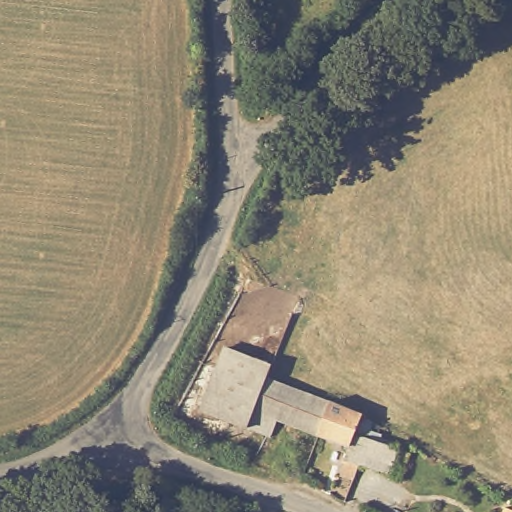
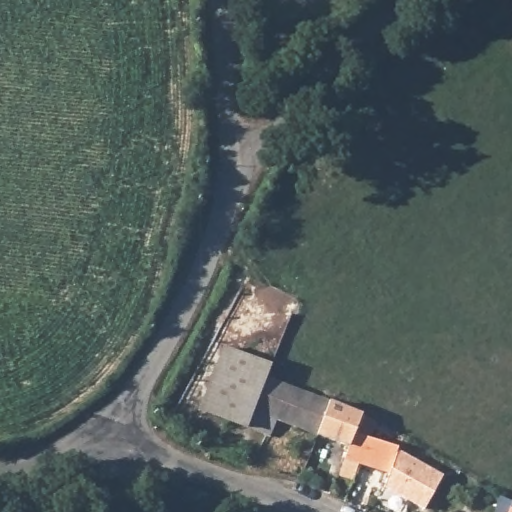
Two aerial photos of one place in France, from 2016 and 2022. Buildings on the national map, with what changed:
unchanged [(254,418),(251,425),(205,405),(225,357),(229,346),(260,360),(256,370),(273,378),(254,418)]
unchanged [(324,399),(313,432),(310,442),(254,418),(273,378),(324,399)]
unchanged [(337,454),(339,444),(313,432),(324,399),(366,417),(361,433),(353,458),(337,454)]
unchanged [(398,445),(392,469),(353,458),(361,433),(398,445)]
new [(392,469),(397,451),(442,477),(426,512),(382,489),(392,469)]

